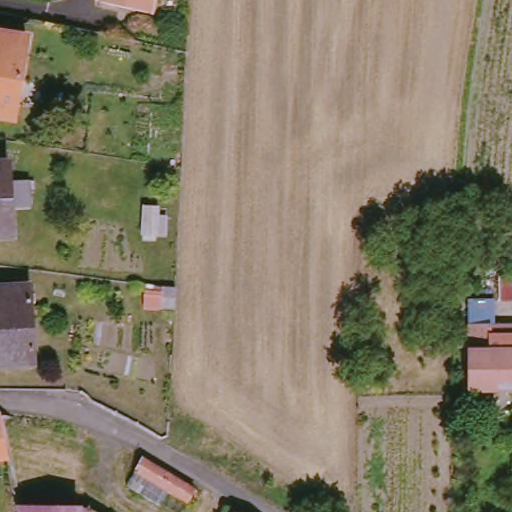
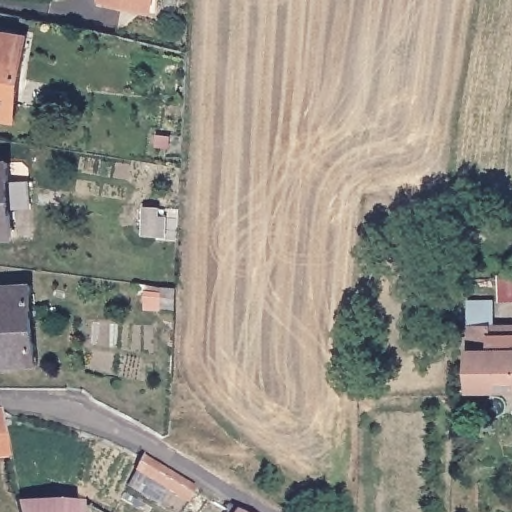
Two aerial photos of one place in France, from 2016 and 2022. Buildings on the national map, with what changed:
unchanged [(107,7),(108,0),(159,0),(155,17),(107,7)]
unchanged [(0,122),(0,36),(34,41),(20,126),(0,122)]
unchanged [(0,241),(0,167),(15,167),(17,241),(0,241)]
unchanged [(0,371),(0,292),(37,290),(41,369),(0,371)]
unchanged [(490,395),(471,396),(471,332),(471,319),(494,318),(495,331),(512,331),(512,395),(490,395)]
unchanged [(14,458),(0,459),(0,415),(4,415),(7,415),(11,435),(11,440),(14,458)]
unchanged [(89,439),(89,476),(89,505),(22,504),(19,492),(14,458),(11,440),(89,439)]
unchanged [(201,493),(195,507),(142,475),(150,463),(174,477),(201,493)]
unchanged [(87,507),(86,512),(25,512),(23,507),(87,507)]

